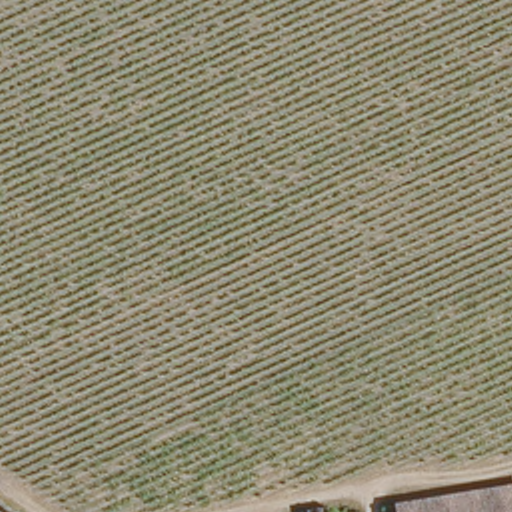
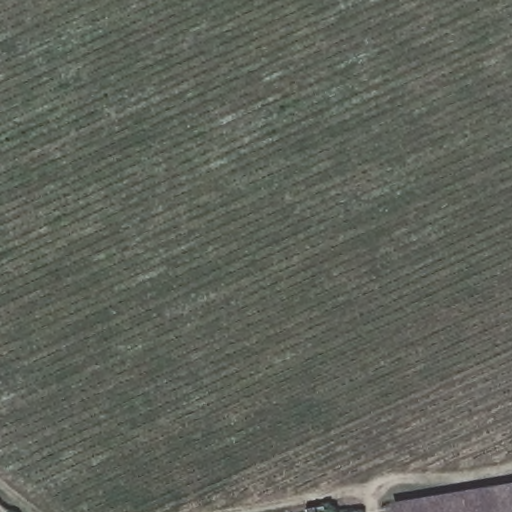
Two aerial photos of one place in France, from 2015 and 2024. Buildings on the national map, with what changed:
unchanged [(512,487),(512,512),(503,512),(500,489),(512,487)]
unchanged [(397,512),(396,506),(399,505),(500,489),(503,512),(397,512)]

